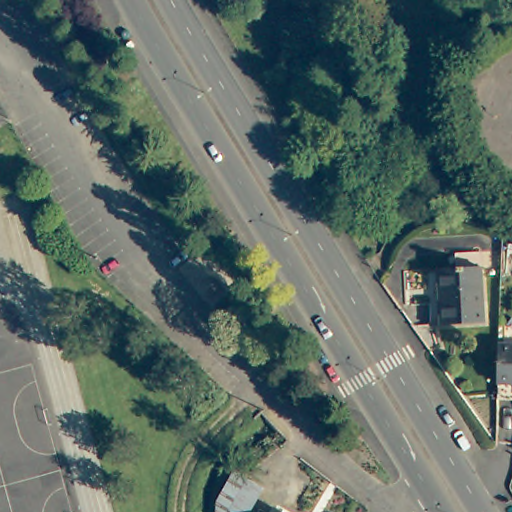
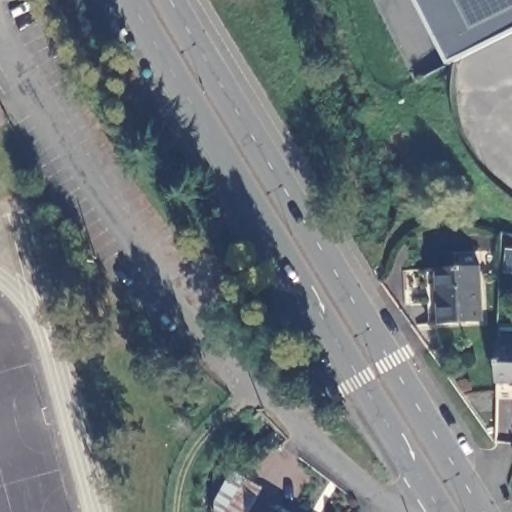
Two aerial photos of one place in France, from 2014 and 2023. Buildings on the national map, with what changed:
new [(512,32),(450,63),(419,0),(512,0),(512,32)]
unchanged [(428,298),(441,299),(443,268),(484,270),(482,323),(440,321),(427,321),(428,298)]
unchanged [(512,385),(493,384),(495,345),(512,346),(512,385)]
unchanged [(250,512),(217,512),(218,501),(235,472),(263,488),(250,512)]
unchanged [(272,512),(274,508),(282,512),(272,512)]

